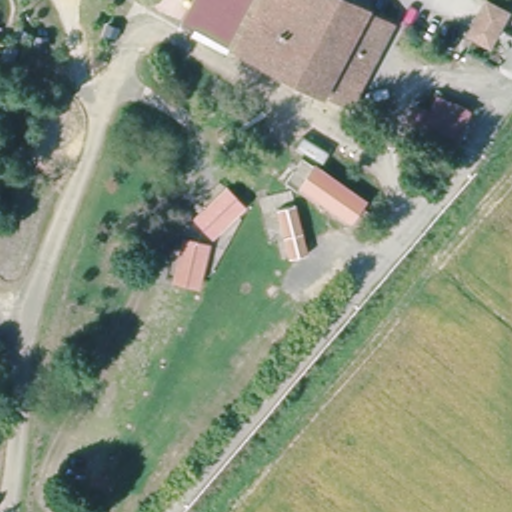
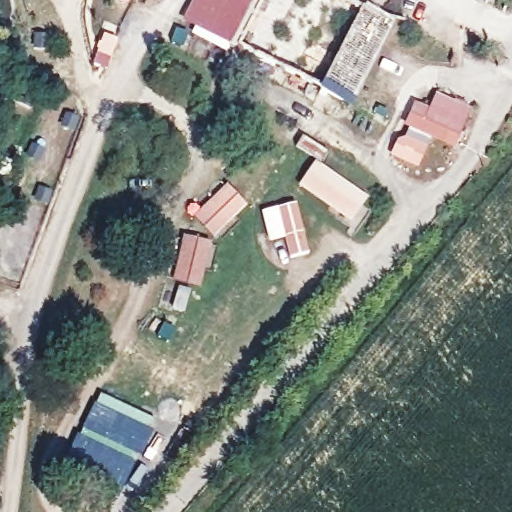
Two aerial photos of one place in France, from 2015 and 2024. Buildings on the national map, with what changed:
unchanged [(202,26),(216,0),(260,0),(239,45),(202,26)]
unchanged [(389,23),(353,103),(239,45),(260,0),(347,0),(389,23)]
unchanged [(489,37),(474,26),(492,0),(497,0),(508,8),(489,37)]
unchanged [(474,117),(458,148),(455,147),(413,124),(422,106),(436,114),(443,101),(474,117)]
unchanged [(366,202),(352,221),(304,183),(318,164),(366,202)]
unchanged [(214,234),(198,217),(228,185),(244,203),(214,234)]
unchanged [(313,254),(295,258),(282,210),(299,204),(313,254)]
unchanged [(200,280),(178,276),(187,236),(209,241),(200,280)]
new [(73,439),(99,392),(156,420),(135,462),(147,471),(138,487),(127,482),(116,498),(60,469),(73,439)]

